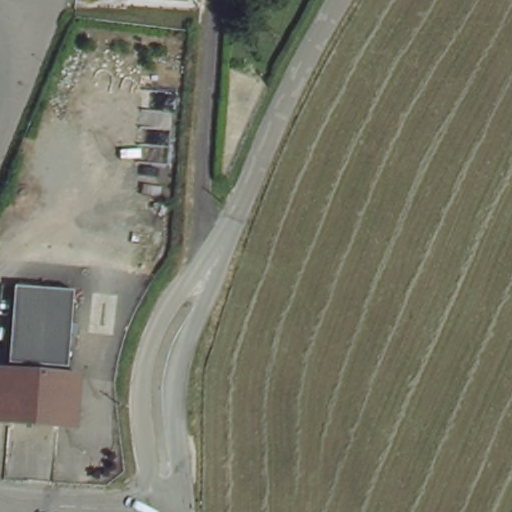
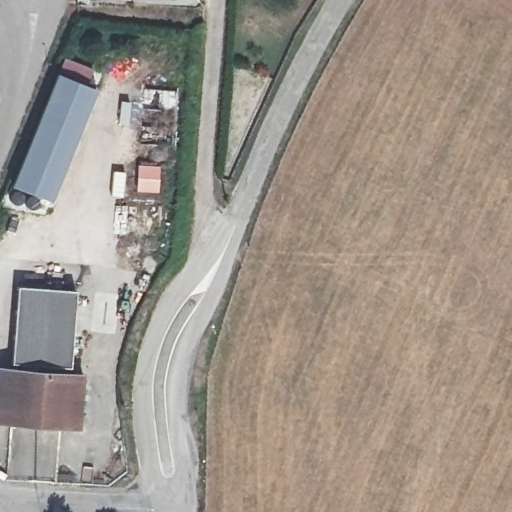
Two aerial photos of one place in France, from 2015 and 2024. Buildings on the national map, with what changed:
new [(47,201),(10,186),(55,72),(62,56),(97,70),(92,86),(95,87),(47,201)]
new [(137,164),(160,165),(159,193),(136,192),(137,164)]
unchanged [(70,364),(12,359),(17,281),(78,287),(70,364)]
unchanged [(12,417),(0,416),(0,362),(16,364),(12,417)]
unchanged [(79,423),(61,421),(12,417),(16,364),(66,368),(82,370),(79,423)]

